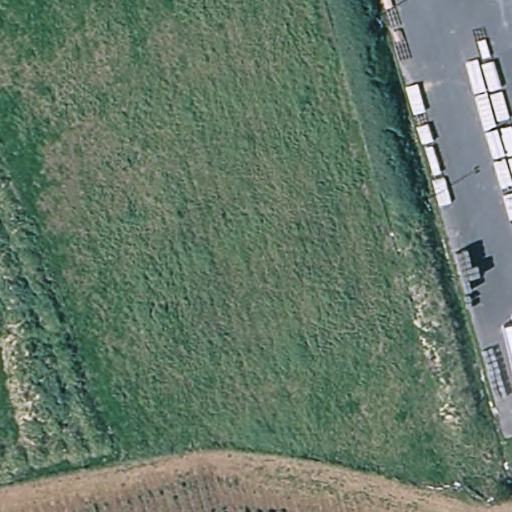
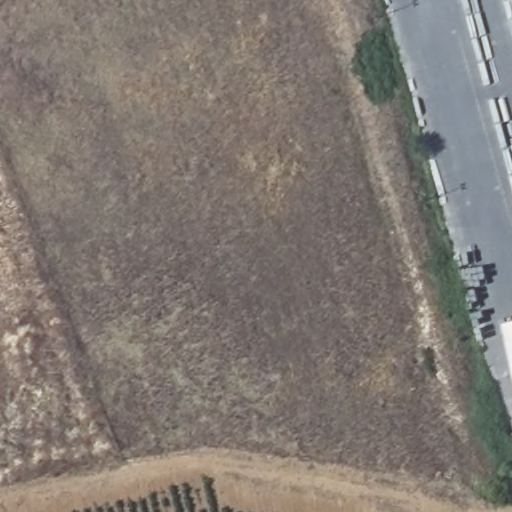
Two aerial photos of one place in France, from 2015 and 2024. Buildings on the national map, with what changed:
unchanged [(503,326),(512,324),(512,365),(503,326)]

